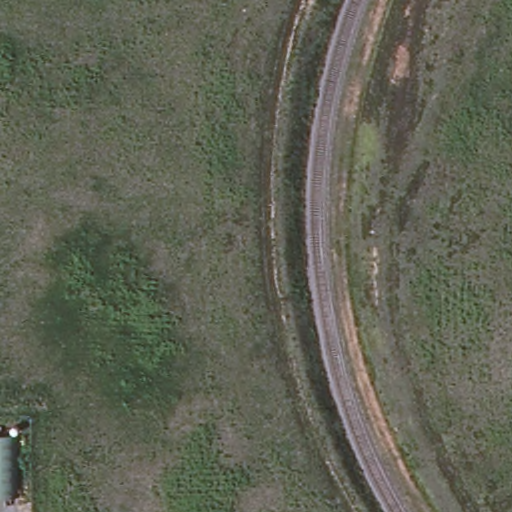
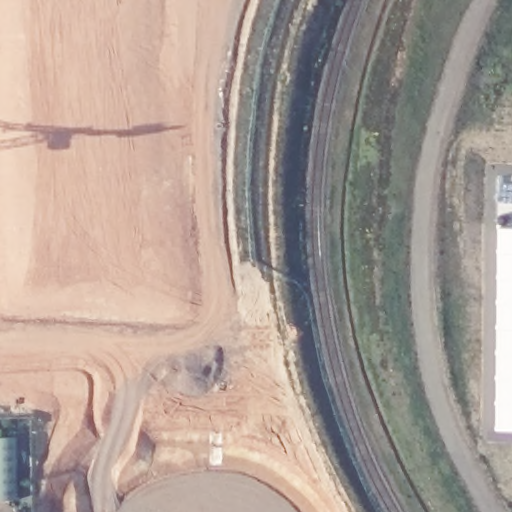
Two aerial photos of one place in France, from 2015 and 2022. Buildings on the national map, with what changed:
new [(512,230),(512,431),(500,431),(496,229),(512,230)]
unchanged [(17,499),(0,499),(0,436),(17,436),(17,499)]

